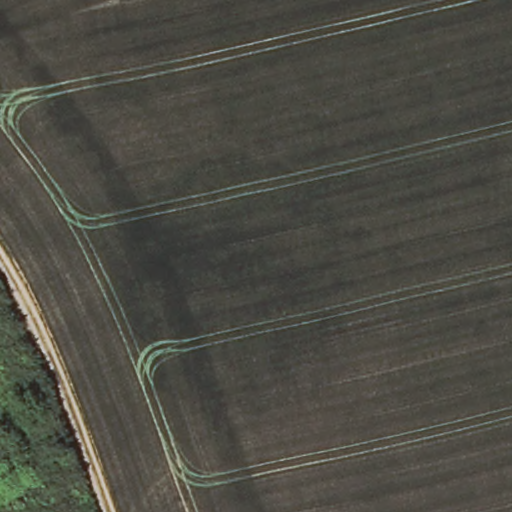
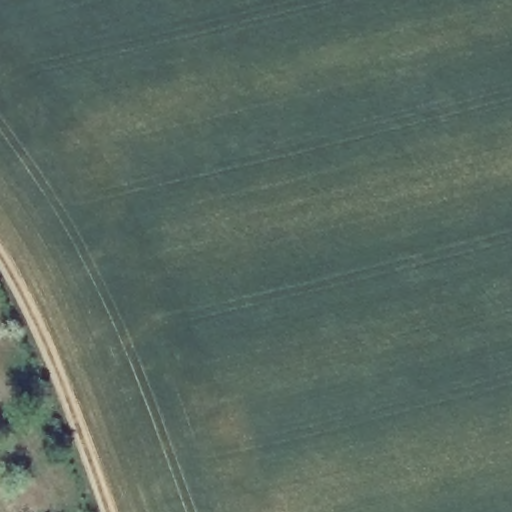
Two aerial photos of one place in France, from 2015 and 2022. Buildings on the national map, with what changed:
[]

